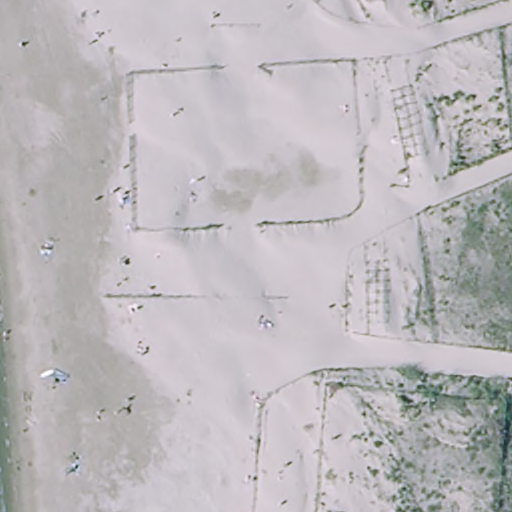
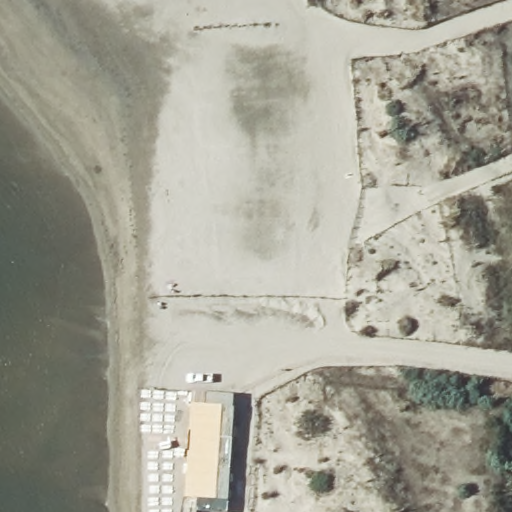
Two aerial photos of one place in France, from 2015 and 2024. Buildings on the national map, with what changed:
new [(223,406),(218,497),(229,498),(228,512),(197,512),(197,500),(186,498),(194,392),(234,395),(233,407),(223,406)]
new [(223,406),(235,407),(230,498),(218,497),(223,406)]

